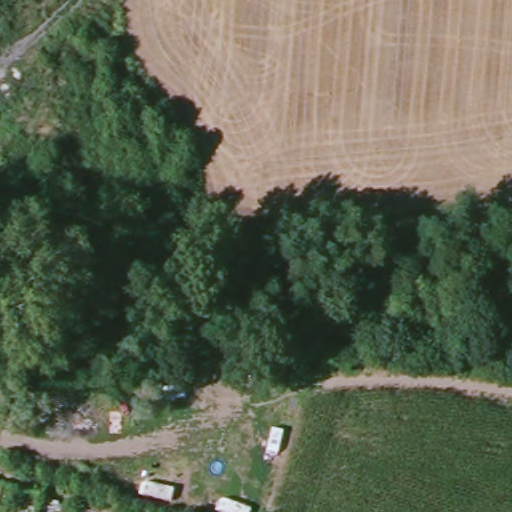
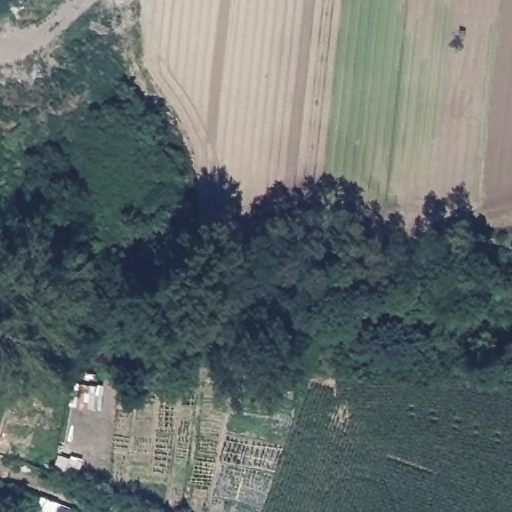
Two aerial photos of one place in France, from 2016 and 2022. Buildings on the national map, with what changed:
[]

